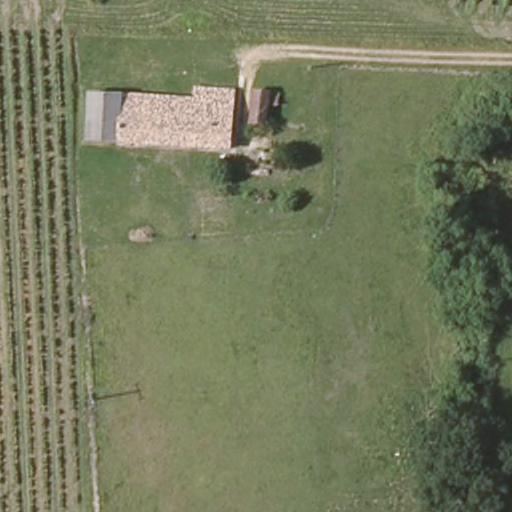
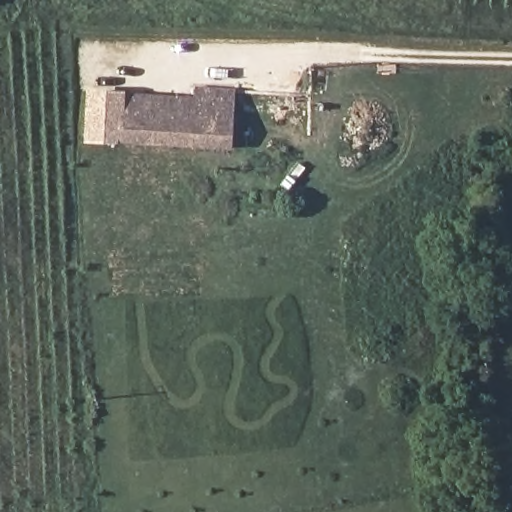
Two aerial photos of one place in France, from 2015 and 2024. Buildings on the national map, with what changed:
unchanged [(232,144),(90,143),(89,97),(193,96),(196,89),(234,91),(232,144)]
unchanged [(266,122),(252,122),(253,93),(267,93),(266,122)]

